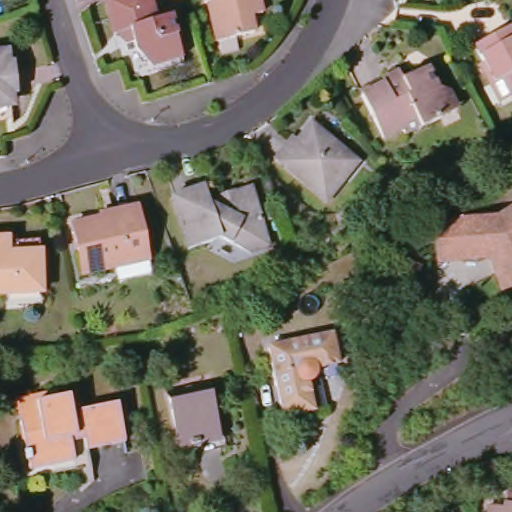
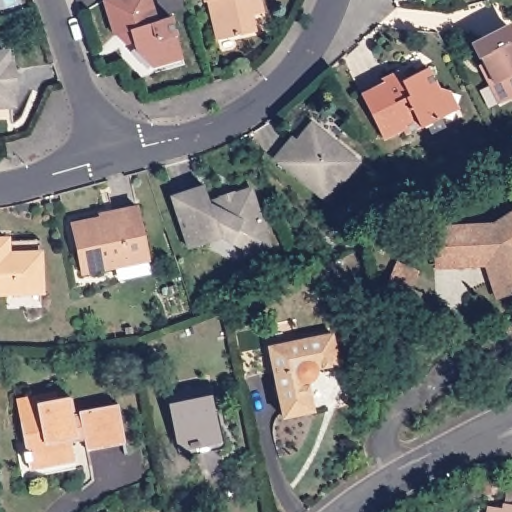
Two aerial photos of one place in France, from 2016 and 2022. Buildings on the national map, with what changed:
unchanged [(169,14),(182,53),(152,62),(134,45),(132,38),(127,40),(122,26),(112,31),(103,0),(149,0),(155,18),(169,14)]
unchanged [(257,14),(252,15),(255,32),(220,40),(210,1),(207,2),(207,0),(259,0),(262,13),(257,14)]
unchanged [(510,27),(512,30),(512,99),(502,104),(480,64),(485,62),(476,45),(510,27)]
unchanged [(5,52),(11,103),(0,105),(0,52),(5,52)]
unchanged [(361,86),(400,66),(403,75),(428,62),(438,83),(451,86),(444,112),(422,123),(422,121),(406,129),(403,124),(385,133),(361,86)]
unchanged [(359,162),(328,201),(275,159),(286,146),(293,137),(298,141),(312,124),(359,162)]
unchanged [(252,251),(222,237),(190,248),(173,195),(204,184),(210,202),(233,194),(235,199),(252,193),(263,226),(269,245),(252,251)]
unchanged [(115,267),(83,273),(73,224),(102,219),(100,214),(112,212),(137,207),(147,255),(148,261),(115,267)]
unchanged [(512,214),(512,292),(498,296),(488,264),(458,265),(438,267),(437,228),(457,226),(495,224),(512,214)]
unchanged [(0,294),(0,239),(8,238),(8,241),(40,239),(40,252),(42,292),(0,294)]
unchanged [(388,281),(420,294),(417,304),(399,296),(400,295),(385,289),(388,281)]
unchanged [(339,358),(316,363),(317,367),(317,372),(316,375),(314,379),(310,381),(309,381),(315,411),(284,417),(270,347),(333,333),(339,358)]
unchanged [(207,381),(219,439),(180,447),(168,390),(207,381)]
unchanged [(80,415),(85,414),(85,411),(123,403),(130,442),(92,449),(88,432),(75,435),(80,459),(37,468),(26,421),(22,399),(61,391),(62,397),(75,395),(80,415)]
unchanged [(490,506),(504,509),(505,503),(507,490),(512,491),(512,512),(489,512),(490,506)]

